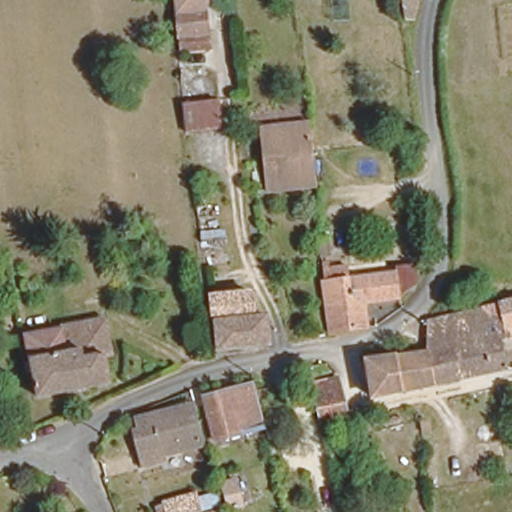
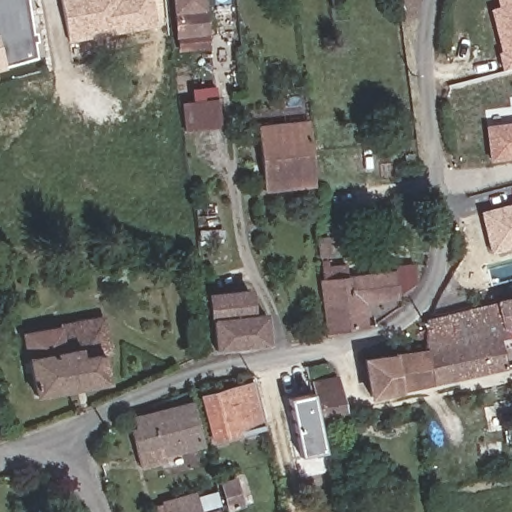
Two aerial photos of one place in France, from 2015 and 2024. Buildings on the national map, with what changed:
new [(38,43),(33,45),(37,59),(0,70),(0,0),(26,0),(38,43)]
new [(151,28),(68,43),(61,0),(147,0),(151,28)]
unchanged [(207,32),(178,36),(176,22),(174,0),(202,0),(203,20),(206,19),(207,32)]
unchanged [(402,19),(400,0),(416,0),(411,20),(402,19)]
new [(512,68),(505,70),(489,11),(498,7),(497,0),(512,0),(512,68)]
unchanged [(217,91),(220,118),(183,123),(180,95),(217,91)]
unchanged [(313,184),(263,189),(256,126),(272,124),(307,121),(307,130),(311,169),(313,184)]
new [(512,159),(497,162),(492,129),(512,126),(512,159)]
new [(480,212),(512,203),(512,247),(490,251),(480,212)]
unchanged [(204,207),(206,218),(195,219),(194,208),(204,207)]
demolished [(221,228),(222,238),(224,239),(227,265),(202,268),(197,231),(221,228)]
unchanged [(325,238),(327,258),(318,258),(316,238),(325,238)]
unchanged [(320,263),(344,260),(345,270),(394,265),(394,258),(412,257),(414,276),(399,290),(362,294),(363,319),(327,325),(321,273),(320,263)]
unchanged [(208,288),(247,284),(250,307),(264,306),(267,333),(227,339),(227,343),(214,345),(208,288)]
unchanged [(471,311),(512,301),(512,332),(500,335),(477,339),(475,329),(471,311)]
unchanged [(505,366),(457,377),(451,346),(425,352),(425,347),(425,322),(471,311),(475,329),(477,339),(500,335),(505,366)]
unchanged [(103,316),(110,352),(102,354),(106,378),(34,392),(24,333),(61,326),(61,324),(103,316)]
unchanged [(369,396),(364,360),(425,352),(451,346),(457,377),(369,396)]
unchanged [(320,415),(313,376),(335,372),(343,410),(320,415)]
unchanged [(216,429),(205,389),(256,375),(267,417),(216,429)]
unchanged [(163,439),(166,455),(143,461),(133,422),(139,420),(137,409),(158,404),(176,400),(175,394),(195,389),(196,392),(198,400),(205,428),(163,439)]
unchanged [(227,511),(221,485),(234,482),(241,508),(227,511)]
unchanged [(192,490),(197,510),(189,512),(160,512),(157,499),(192,490)]
unchanged [(219,512),(200,512),(217,508),(219,512)]

